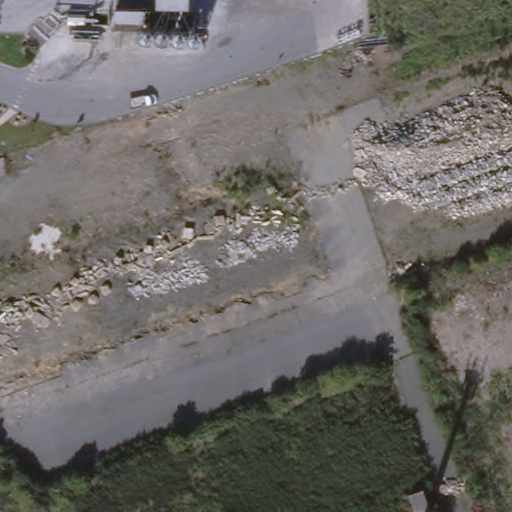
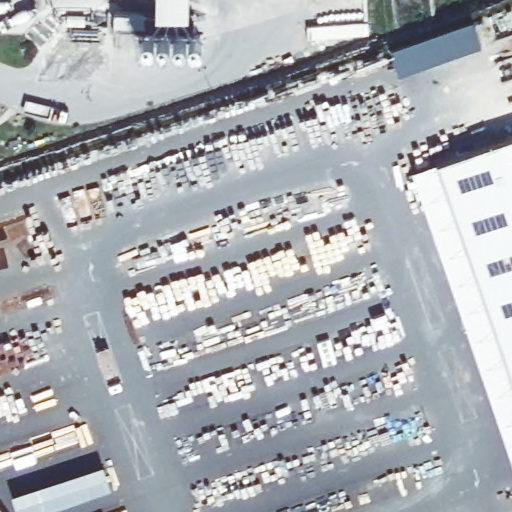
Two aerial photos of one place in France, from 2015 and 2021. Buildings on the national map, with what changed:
unchanged [(156,0),(188,0),(187,16),(156,15),(156,0)]
unchanged [(156,15),(187,16),(192,16),(191,36),(113,34),(114,14),(156,15)]
new [(390,47),(472,20),(480,43),(398,71),(390,47)]
new [(512,463),(412,166),(512,131),(512,463)]
new [(113,488),(42,512),(19,512),(11,493),(103,463),(113,488)]

